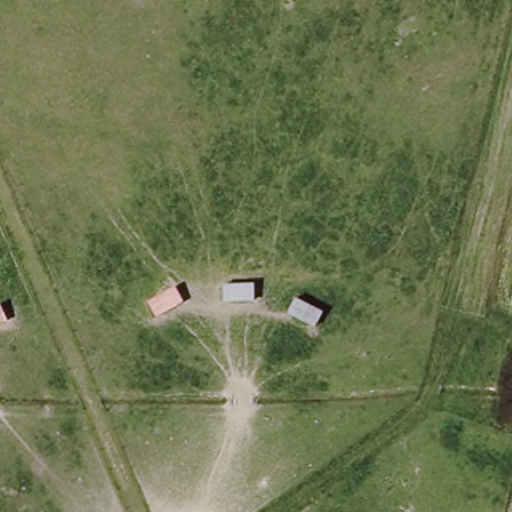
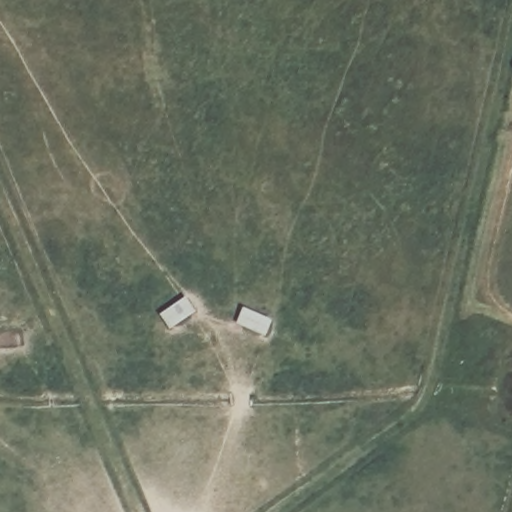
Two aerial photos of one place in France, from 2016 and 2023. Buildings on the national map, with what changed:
[]

